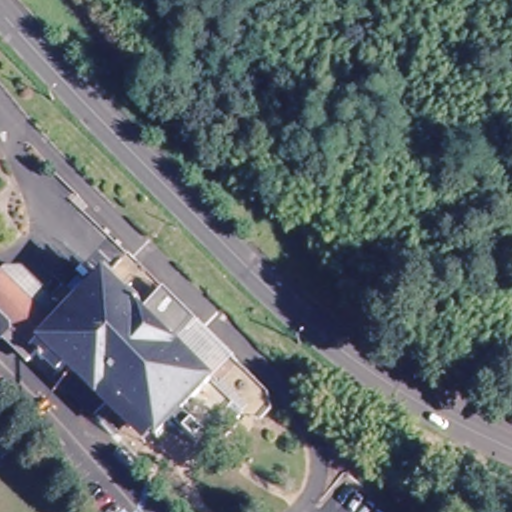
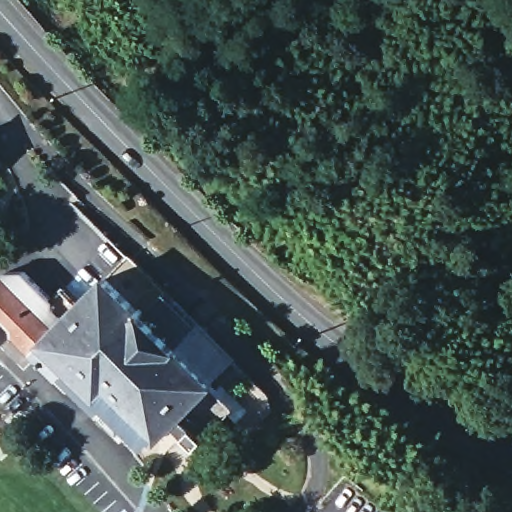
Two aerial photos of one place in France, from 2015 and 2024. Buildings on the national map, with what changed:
unchanged [(88,415),(49,377),(52,373),(33,354),(26,361),(0,335),(0,272),(0,271),(18,271),(46,299),(57,288),(73,304),(100,277),(136,314),(170,347),(206,383),(207,383),(206,384),(237,416),(233,420),(235,422),(220,438),(218,435),(214,439),(206,431),(191,446),(179,433),(177,435),(166,424),(152,439),(147,434),(139,443),(99,404),(88,415)]
unchanged [(136,314),(159,291),(192,324),(170,347),(136,314)]
unchanged [(192,324),(228,360),(206,383),(170,347),(192,324)]

